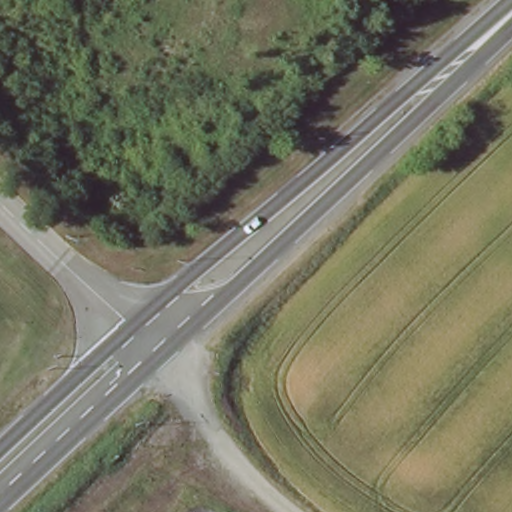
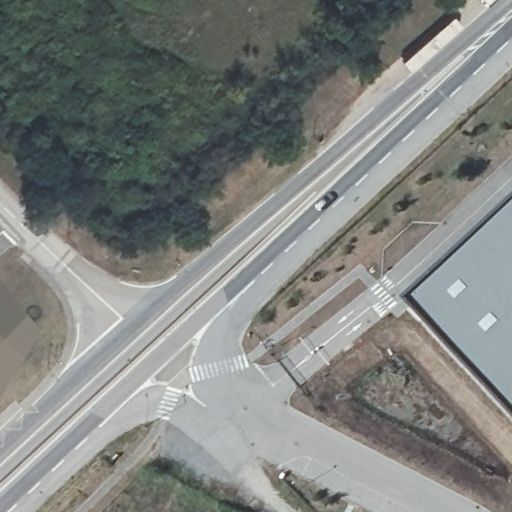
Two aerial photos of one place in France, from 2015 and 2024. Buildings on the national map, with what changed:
new [(402,302),(512,198),(512,418),(402,302)]

